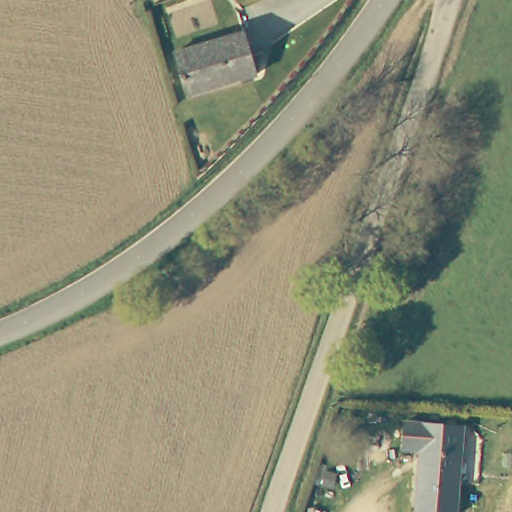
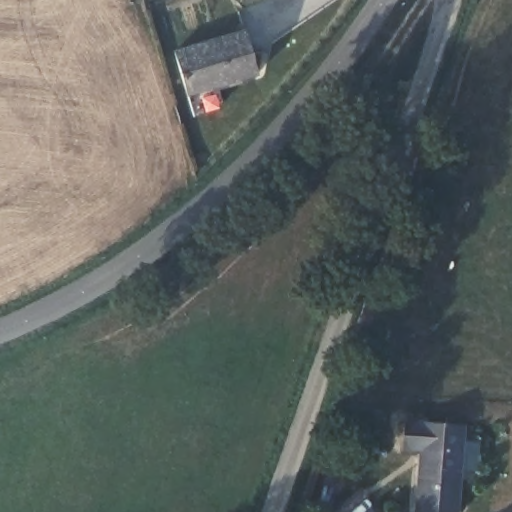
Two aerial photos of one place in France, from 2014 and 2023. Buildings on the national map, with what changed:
unchanged [(257,73),(189,93),(177,52),(246,32),(257,73)]
unchanged [(460,448),(456,512),(440,512),(416,511),(420,446),(460,448)]

